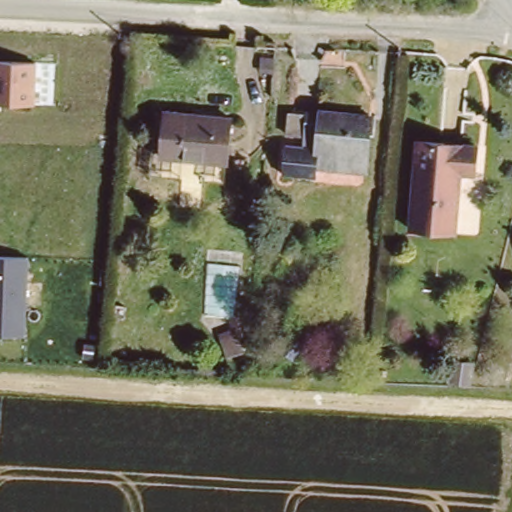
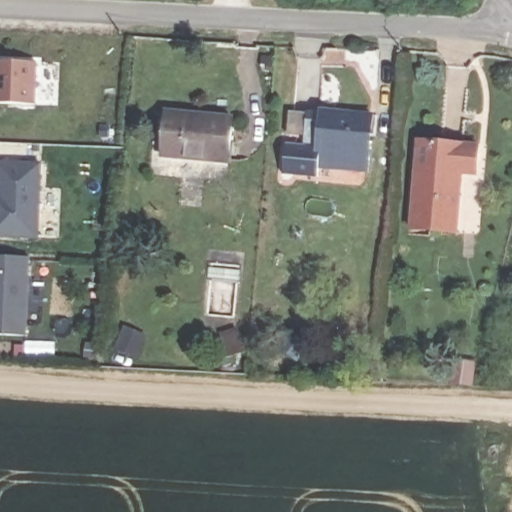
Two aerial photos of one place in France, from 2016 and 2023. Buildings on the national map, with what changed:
unchanged [(38,63),(38,108),(0,107),(0,62),(38,63)]
unchanged [(230,115),(227,160),(164,156),(167,111),(230,115)]
unchanged [(316,114),(380,119),(375,173),(327,168),(326,181),(292,178),(296,153),(294,151),(293,150),(292,148),(292,146),(294,144),(295,143),(298,143),(300,143),(301,145),(302,146),(313,146),(316,114)]
unchanged [(480,147),(478,175),(461,175),(457,234),(411,229),(419,141),(480,147)]
new [(41,164),(38,239),(0,237),(0,162),(41,164)]
unchanged [(30,257),(26,337),(0,336),(0,256),(30,257)]
unchanged [(311,344),(301,357),(277,336),(287,323),(311,344)]
unchanged [(476,356),(475,378),(455,377),(457,355),(476,356)]

